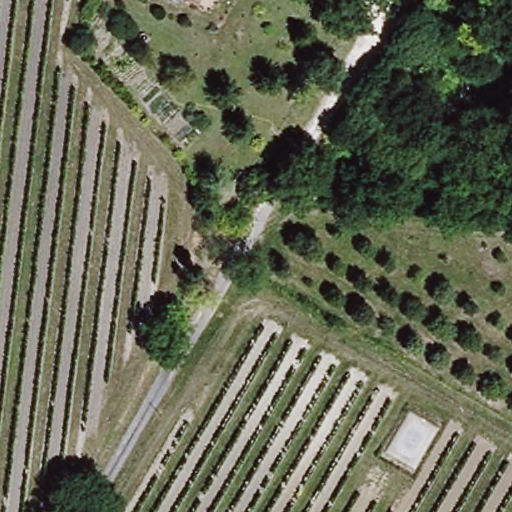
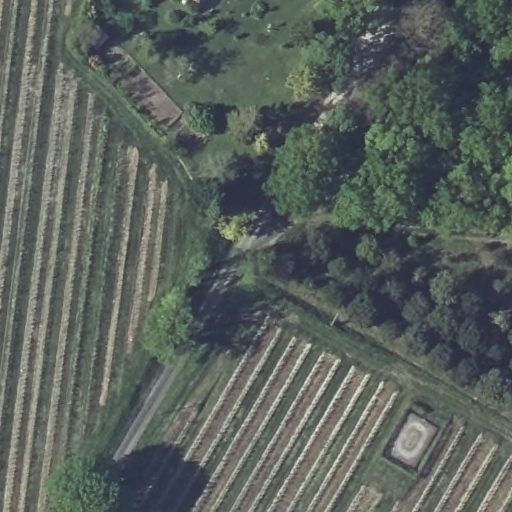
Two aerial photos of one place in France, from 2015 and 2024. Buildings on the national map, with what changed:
unchanged [(194,2),(190,0),(195,0),(194,2)]

